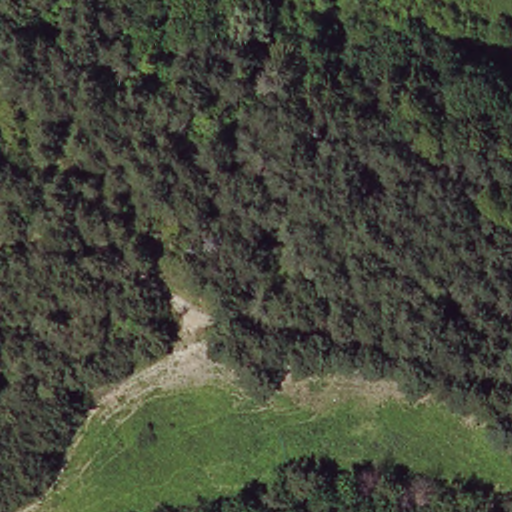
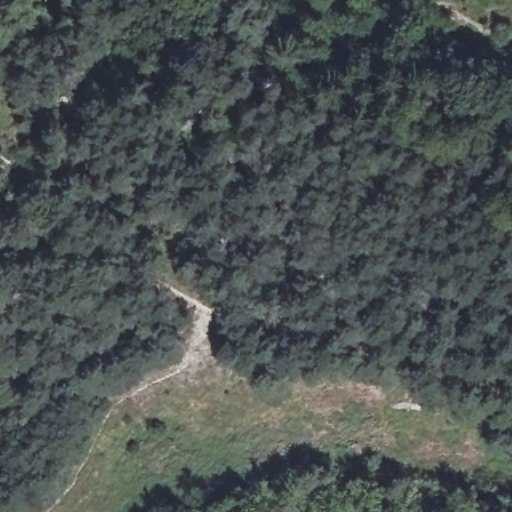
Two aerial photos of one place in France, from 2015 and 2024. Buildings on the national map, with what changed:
[]

